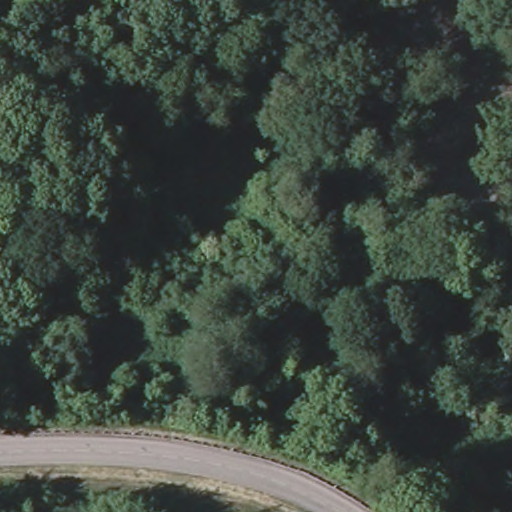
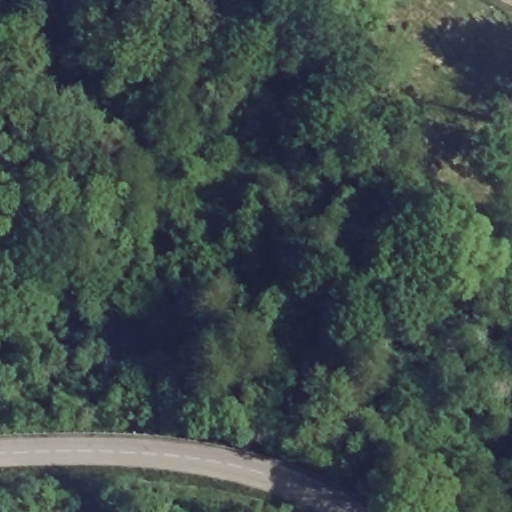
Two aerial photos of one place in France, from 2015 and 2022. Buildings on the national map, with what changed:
[]

